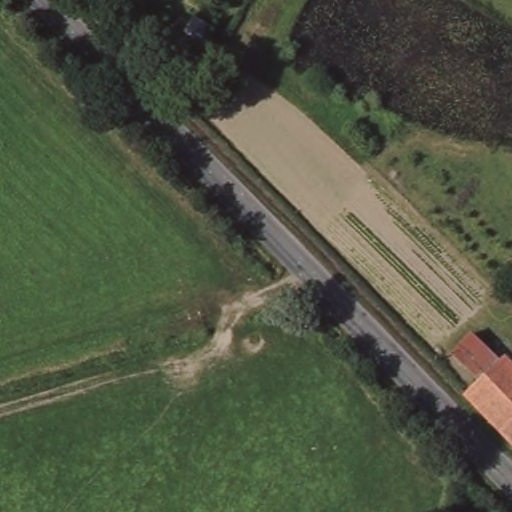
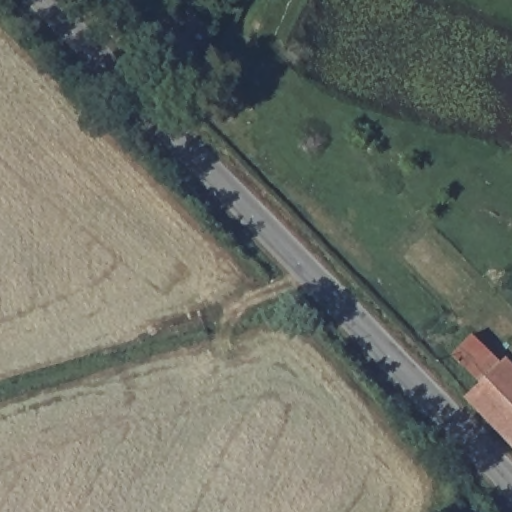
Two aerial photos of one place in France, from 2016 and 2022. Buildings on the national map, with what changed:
unchanged [(224,29),(240,35),(222,70),(206,64),(224,29)]
unchanged [(472,333),(501,363),(480,388),(450,358),(472,333)]
unchanged [(501,363),(504,359),(512,366),(512,455),(463,407),(480,388),(501,363)]

